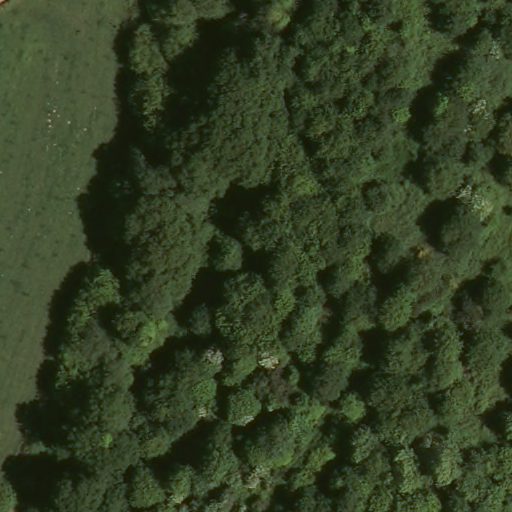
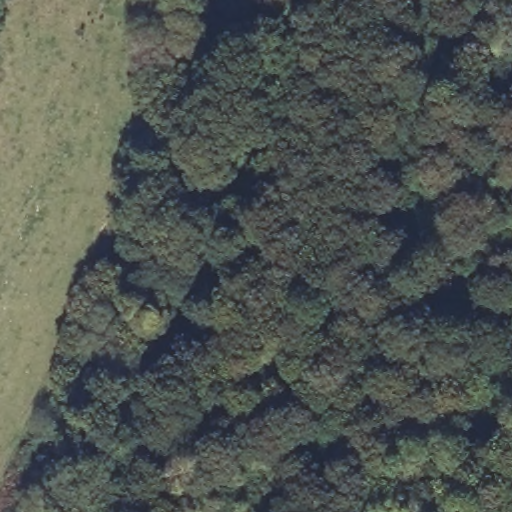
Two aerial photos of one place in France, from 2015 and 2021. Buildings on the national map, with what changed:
[]

